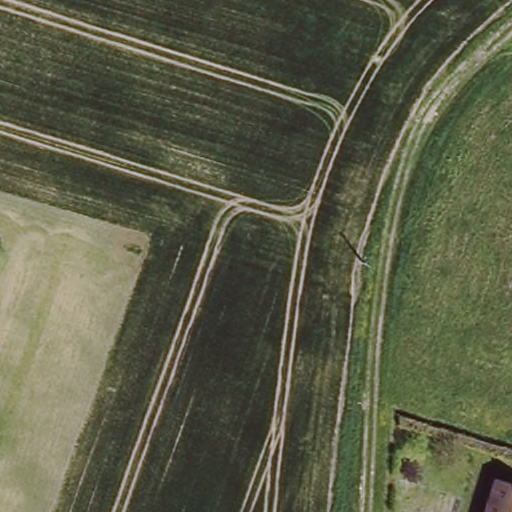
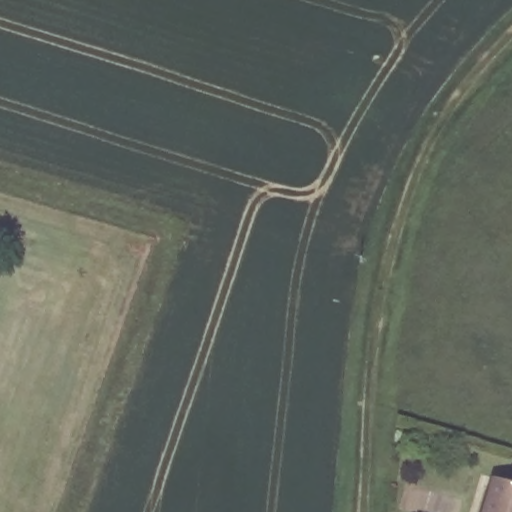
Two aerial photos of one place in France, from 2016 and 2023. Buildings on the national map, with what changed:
unchanged [(495,473),(512,479),(512,512),(483,512),(495,473)]

